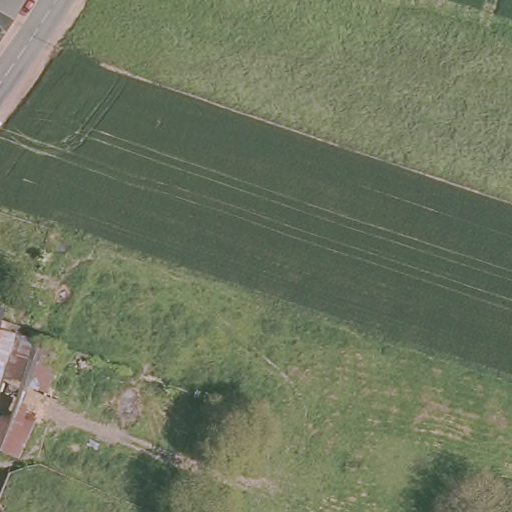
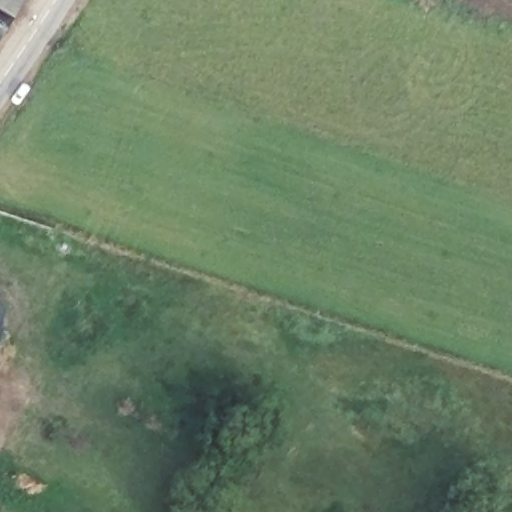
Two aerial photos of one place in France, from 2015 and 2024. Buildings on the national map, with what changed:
unchanged [(0,7),(0,0),(29,0),(18,16),(0,7)]
unchanged [(0,42),(0,9),(17,19),(1,43),(0,42)]
demolished [(2,318),(18,329),(69,346),(20,456),(0,448),(0,306),(5,307),(2,318)]
new [(0,325),(0,307),(6,309),(0,325)]
new [(0,333),(0,329),(1,330),(0,333)]

